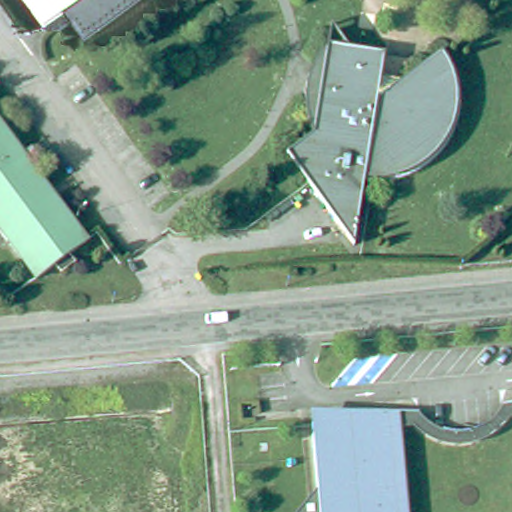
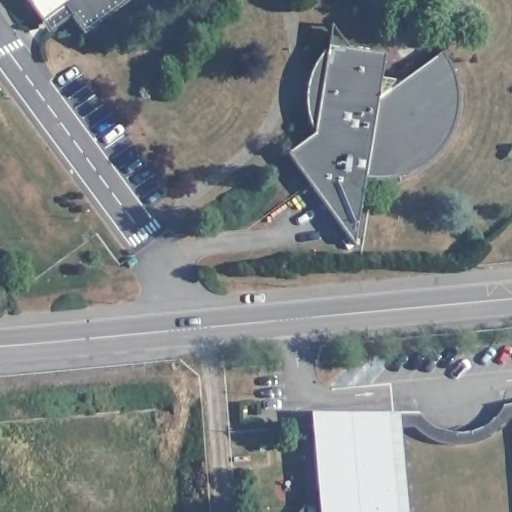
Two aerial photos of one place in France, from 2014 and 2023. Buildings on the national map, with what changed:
unchanged [(80,23),(68,6),(50,19),(44,10),(37,14),(27,0),(112,0),(80,23)]
unchanged [(300,97),(301,83),(306,70),(313,57),(323,46),(327,44),(385,55),(380,75),(401,80),(440,53),(450,75),(451,116),(437,150),(397,178),(361,176),(348,244),(282,150),(309,130),(300,97)]
demolished [(33,281),(0,239),(0,139),(15,157),(20,166),(81,244),(33,281)]
unchanged [(313,437),(311,415),(353,413),(388,411),(397,512),(319,512),(317,486),(313,437)]
unchanged [(319,512),(297,512),(317,486),(319,512)]

